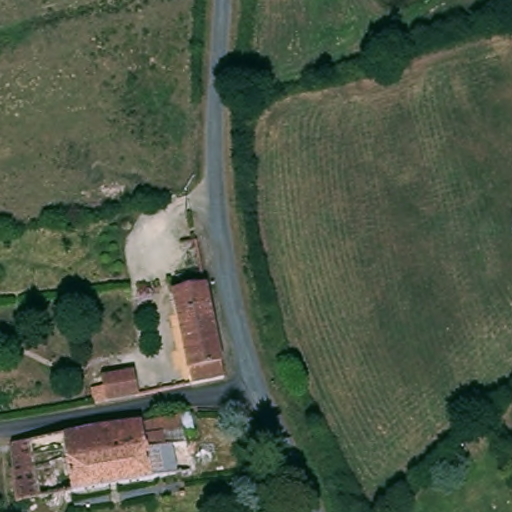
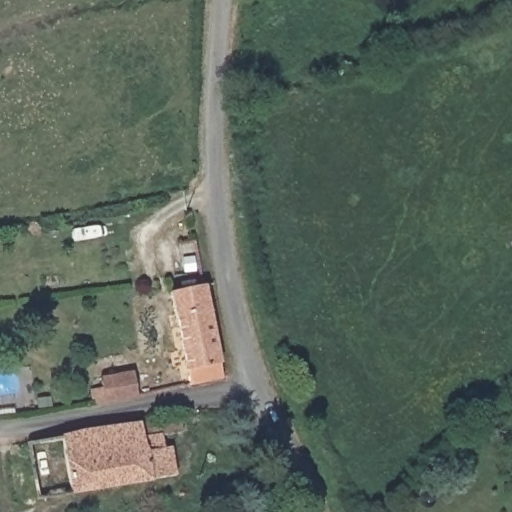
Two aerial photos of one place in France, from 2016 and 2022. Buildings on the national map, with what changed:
unchanged [(205,283),(225,374),(197,380),(188,382),(166,292),(205,283)]
unchanged [(98,358),(124,354),(128,381),(102,384),(100,370),(98,358)]
unchanged [(66,432),(180,416),(183,435),(185,452),(188,476),(20,498),(10,441),(66,432)]

